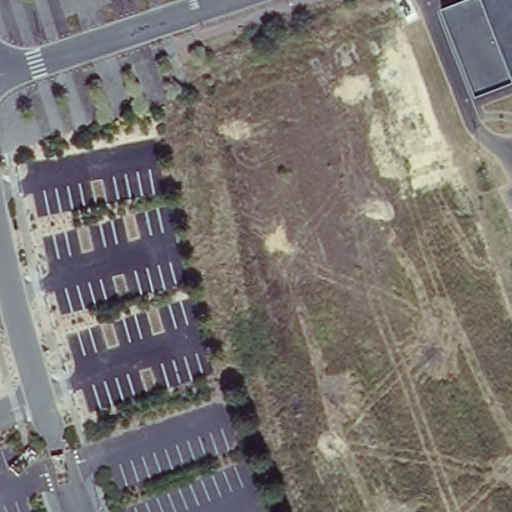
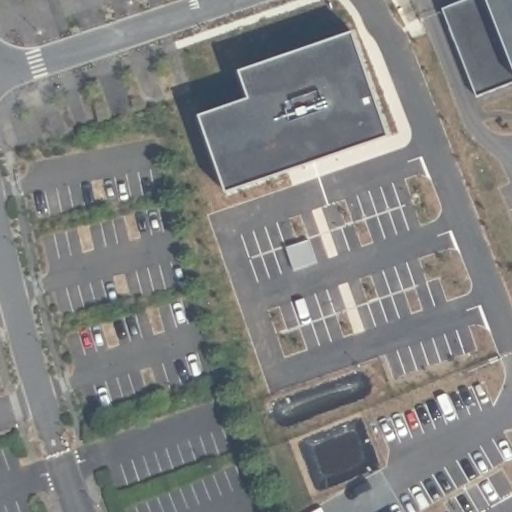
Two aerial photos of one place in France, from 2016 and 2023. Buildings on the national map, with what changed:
unchanged [(442,9),(463,0),(512,0),(512,82),(476,98),(442,9)]
new [(389,137),(226,194),(200,116),(250,100),(240,72),(353,33),(389,137)]

